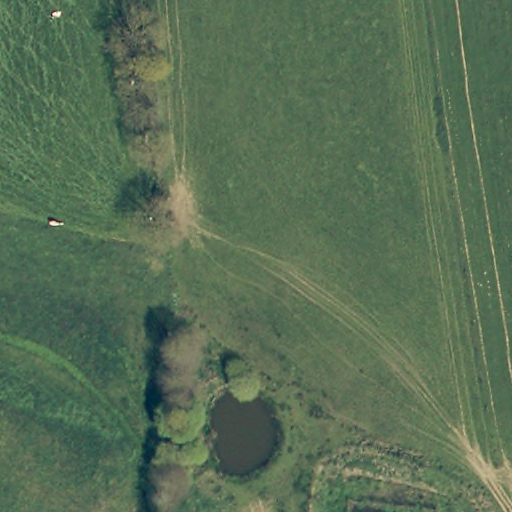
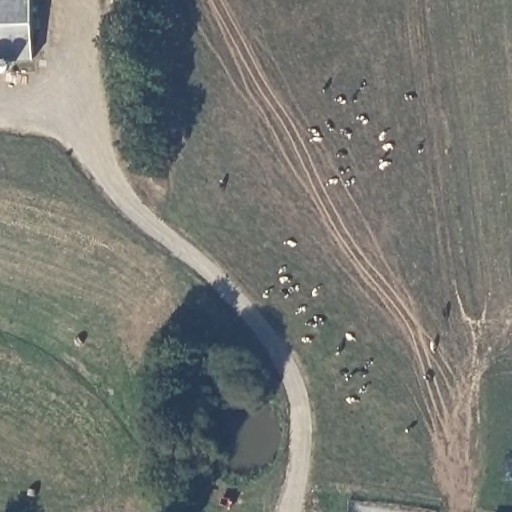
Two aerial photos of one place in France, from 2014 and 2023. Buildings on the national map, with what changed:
new [(0,62),(0,0),(31,0),(33,61),(0,62)]

